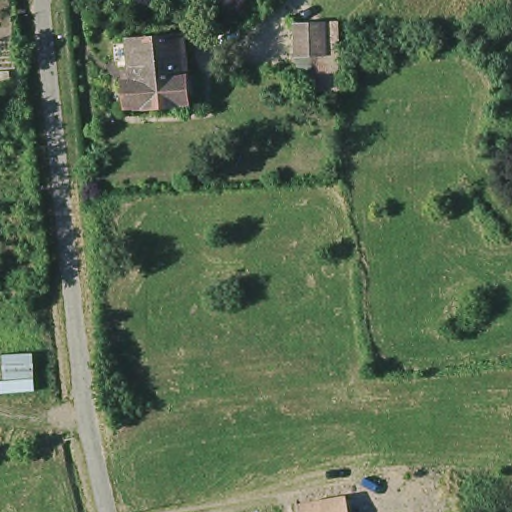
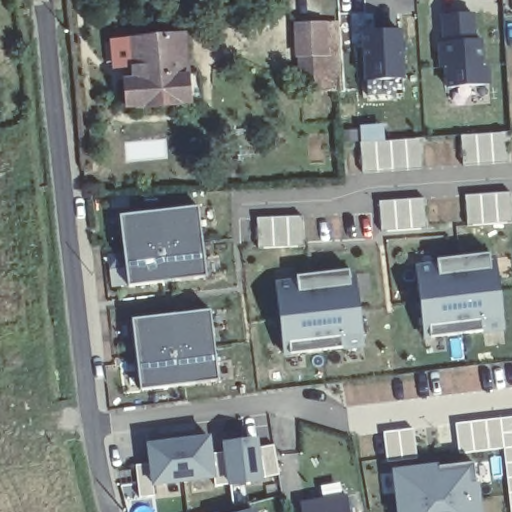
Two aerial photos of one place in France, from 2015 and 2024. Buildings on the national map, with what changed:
new [(443,42),(441,15),(471,12),(472,39),(479,39),(481,66),(486,65),(487,83),(446,86),(444,65),(440,66),(438,43),(443,42)]
unchanged [(310,56),(293,57),(291,25),(321,24),(333,23),(337,91),(325,92),(311,92),(310,56)]
unchanged [(196,99),(185,100),(130,105),(130,102),(122,103),(120,76),(127,76),(123,37),(180,32),(182,70),(194,70),(196,99)]
new [(401,32),(403,82),(364,84),(361,34),(401,32)]
new [(504,131),(506,162),(461,165),(459,135),(504,131)]
new [(419,137),(421,167),(360,172),(358,142),(419,137)]
new [(512,222),(465,227),(465,196),(512,193),(512,222)]
new [(430,200),(430,231),(381,232),(380,202),(430,200)]
new [(125,291),(115,212),(203,202),(212,281),(125,291)]
new [(305,217),(303,249),(258,249),(257,219),(305,217)]
new [(489,260),(495,259),(503,329),(425,338),(416,268),(438,266),(437,260),(489,254),(489,260)]
new [(285,352),(277,285),(298,282),(297,277),(349,272),(350,276),(355,275),(362,345),(285,352)]
new [(225,383),(136,395),(127,315),(215,305),(225,383)]
new [(1,394),(1,381),(5,380),(3,355),(33,352),(36,391),(1,394)]
new [(512,512),(505,451),(460,455),(456,424),(512,417),(512,512)]
new [(210,433),(215,477),(150,483),(145,440),(210,433)]
new [(260,436),(262,478),(228,481),(221,440),(260,436)]
new [(477,458),(484,512),(396,512),(391,467),(477,458)]
unchanged [(303,505),(346,497),(349,512),(304,512),(303,505)]
new [(257,506),(259,512),(231,512),(257,506)]

